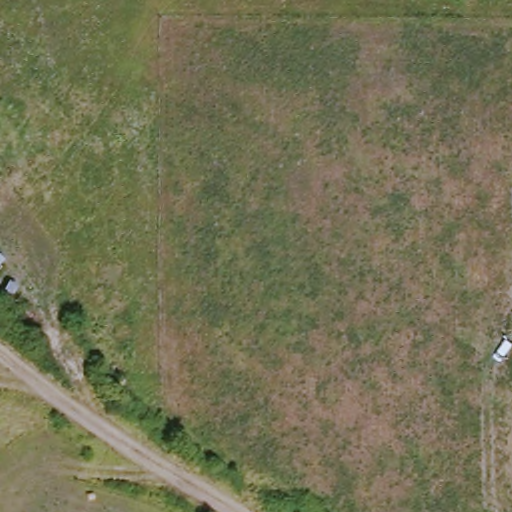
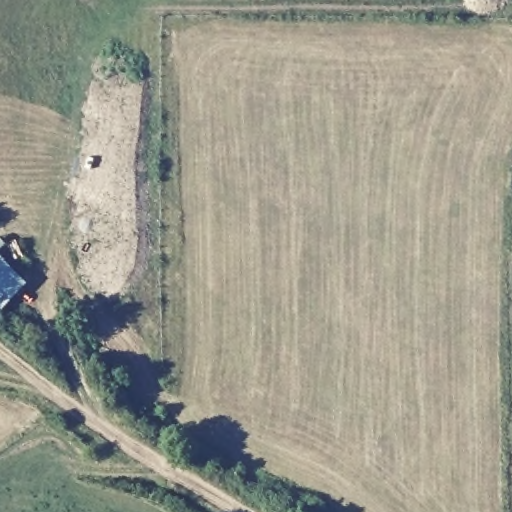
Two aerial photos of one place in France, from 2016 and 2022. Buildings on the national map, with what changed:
unchanged [(0,268),(0,249),(9,257),(0,268)]

